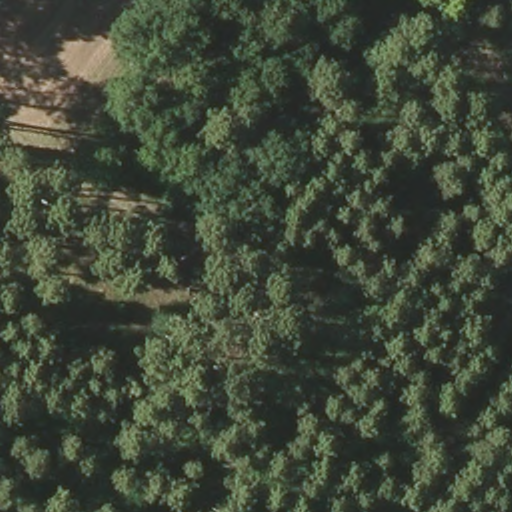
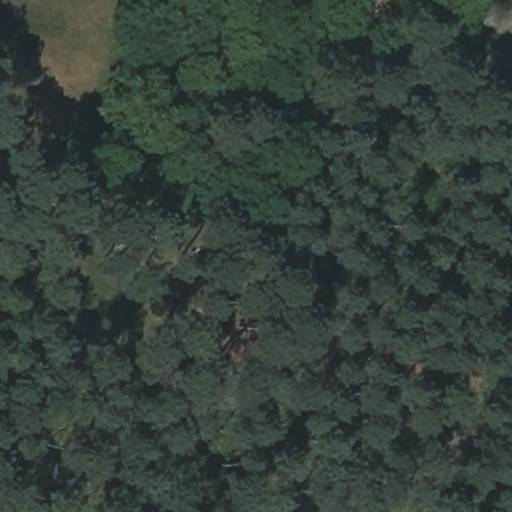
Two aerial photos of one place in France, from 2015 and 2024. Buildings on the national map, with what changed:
[]

